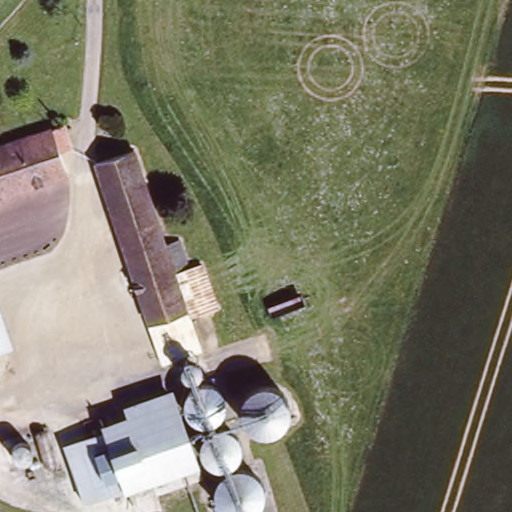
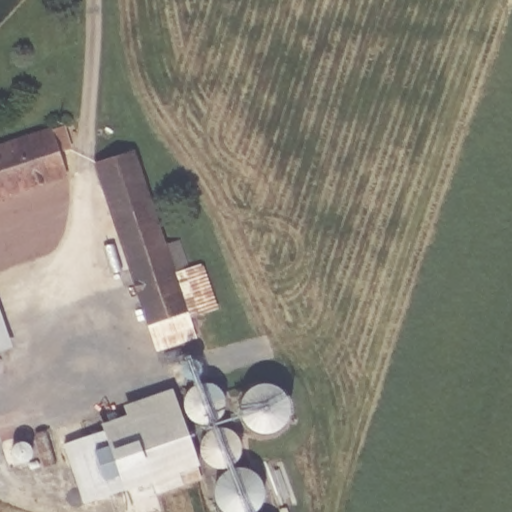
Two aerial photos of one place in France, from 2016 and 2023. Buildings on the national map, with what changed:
unchanged [(60,151),(65,168),(0,192),(0,143),(60,122),(68,148),(60,151)]
unchanged [(155,350),(97,179),(89,158),(127,145),(135,165),(160,241),(178,235),(188,266),(172,272),(187,317),(193,336),(200,353),(160,366),(155,350)]
unchanged [(187,317),(172,272),(188,266),(200,262),(215,307),(187,317)]
unchanged [(0,347),(0,299),(15,341),(0,347)]
unchanged [(100,427),(125,415),(123,404),(168,389),(167,367),(201,360),(264,512),(219,512),(200,463),(122,492),(80,505),(62,444),(100,427)]
unchanged [(0,369),(0,363),(2,368),(0,369)]
unchanged [(275,387),(282,392),(287,400),(290,410),(288,422),(280,434),(269,438),(258,437),(248,432),(242,423),(239,411),(240,400),(246,391),(258,385),(275,387)]

